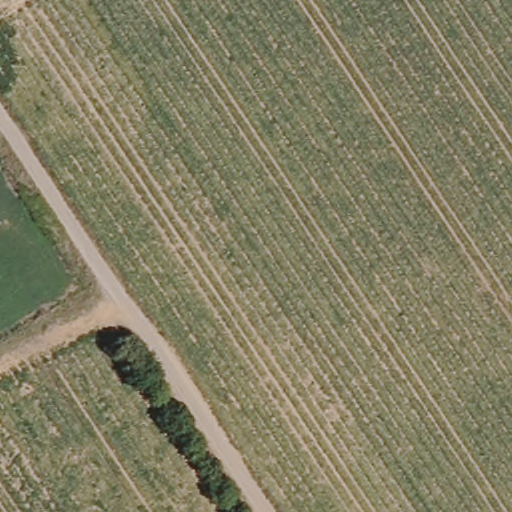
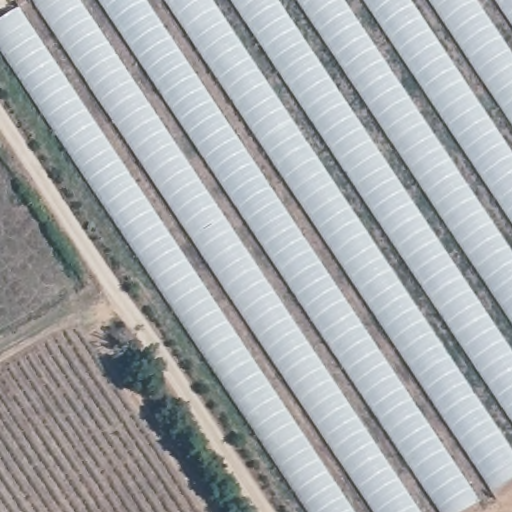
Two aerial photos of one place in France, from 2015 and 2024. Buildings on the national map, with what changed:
new [(468,512),(441,512),(440,510),(436,512),(309,512),(0,50),(0,21),(32,0),(512,0),(512,483),(468,512)]
demolished [(101,369),(108,367),(183,512),(0,512),(0,396),(91,350),(101,369)]

